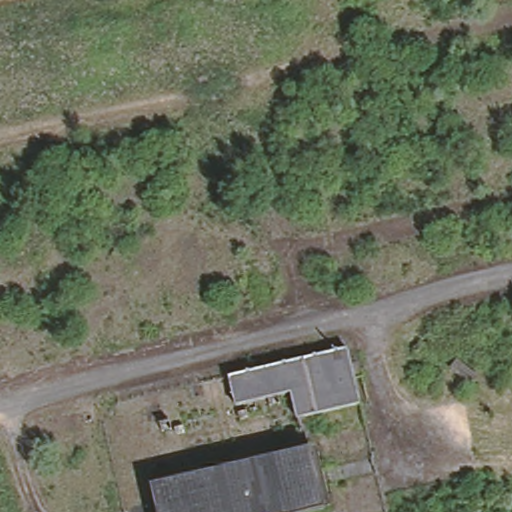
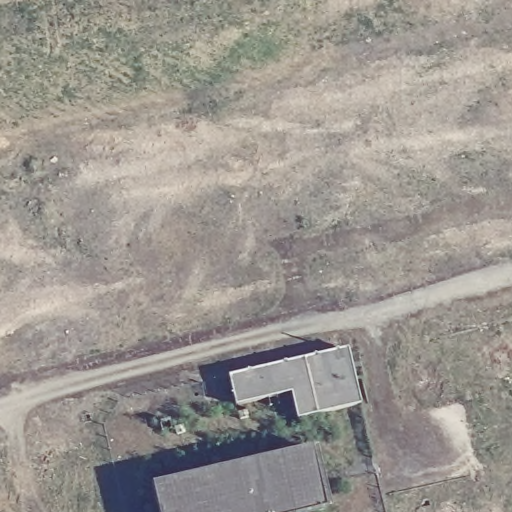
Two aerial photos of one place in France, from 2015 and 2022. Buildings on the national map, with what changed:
unchanged [(339,351),(349,395),(289,409),(285,390),(237,401),(231,376),(339,351)]
unchanged [(326,451),(339,508),(321,512),(138,512),(134,494),(326,451)]

